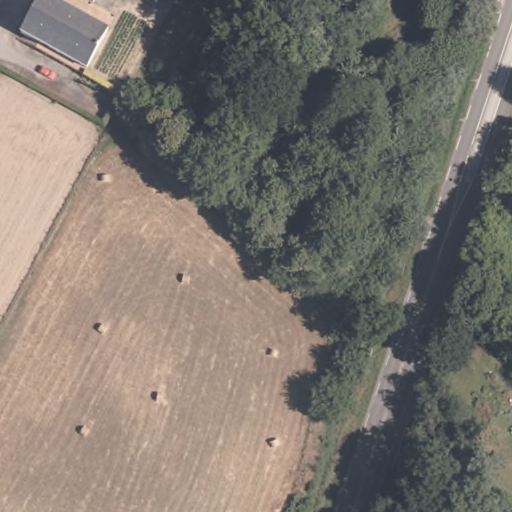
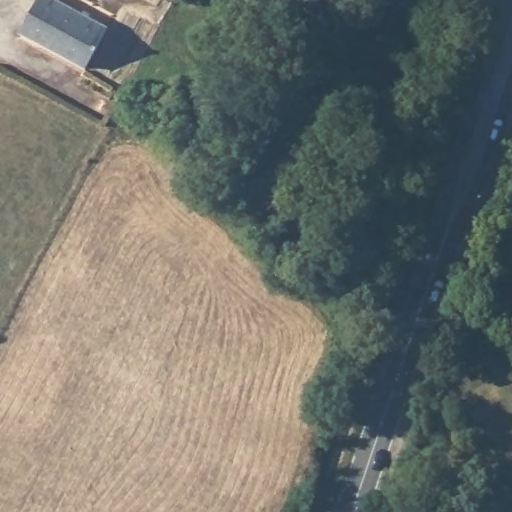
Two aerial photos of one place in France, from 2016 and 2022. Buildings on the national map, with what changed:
unchanged [(107,24),(85,65),(27,35),(19,30),(36,0),(64,0),(107,24)]

